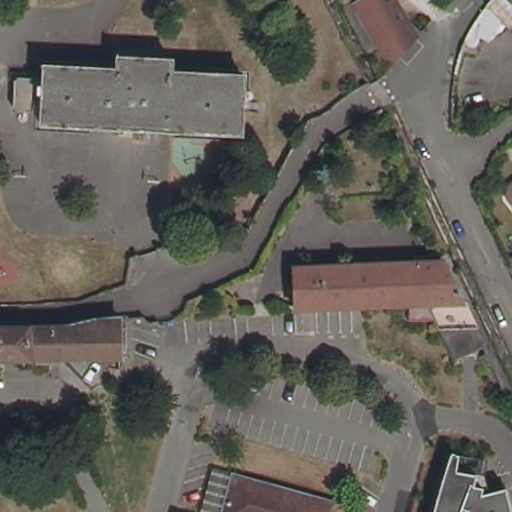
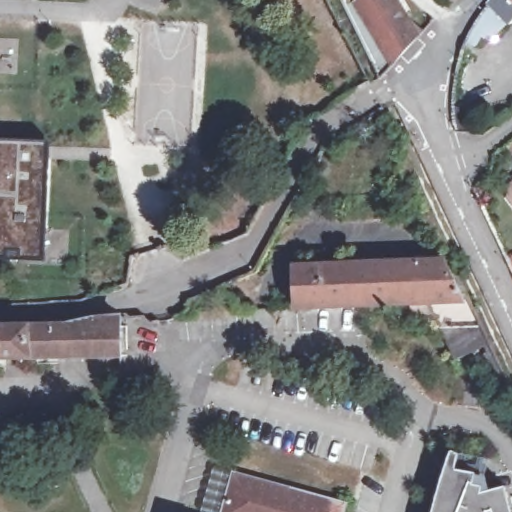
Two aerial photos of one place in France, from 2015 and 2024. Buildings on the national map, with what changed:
unchanged [(384,40),(360,0),(403,0),(414,19),(415,21),(384,40)]
unchanged [(508,17),(489,32),(482,28),(475,40),(465,36),(468,29),(473,17),(479,9),(485,1),(486,0),(512,0),(512,16),(509,18),(508,17)]
demolished [(48,112),(21,110),(23,77),(48,77),(49,65),(123,69),(123,57),(177,57),(178,71),(251,75),(248,134),(47,123),(48,112)]
new [(49,142),(44,262),(0,261),(0,141),(49,142)]
unchanged [(314,183),(311,192),(301,186),(305,179),(314,183)]
unchanged [(509,185),(512,182),(512,201),(508,195),(509,185)]
unchanged [(419,207),(427,222),(415,228),(409,216),(419,207)]
unchanged [(512,241),(504,223),(512,219),(512,241)]
unchanged [(512,270),(493,229),(498,226),(512,256),(512,270)]
unchanged [(484,336),(456,351),(436,308),(411,310),(409,292),(297,298),(296,259),(446,252),(484,336)]
unchanged [(71,322),(94,316),(128,313),(126,351),(0,354),(0,323),(71,322)]
unchanged [(437,487),(442,468),(447,452),(484,459),(479,487),(478,493),(511,485),(512,491),(512,512),(430,512),(437,487)]
unchanged [(227,512),(224,512),(205,506),(218,460),(240,467),(239,469),(227,512)]
unchanged [(239,469),(351,501),(348,512),(227,512),(239,469)]

